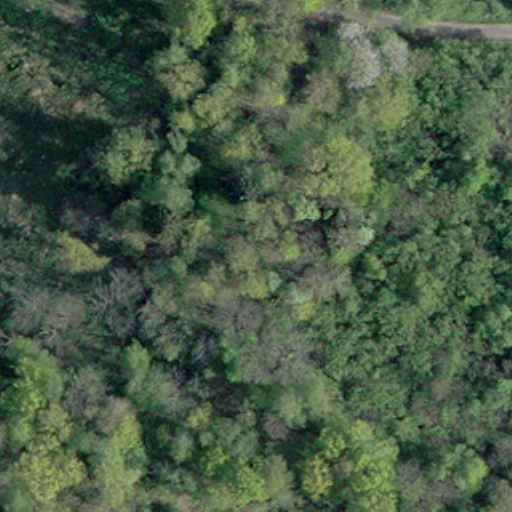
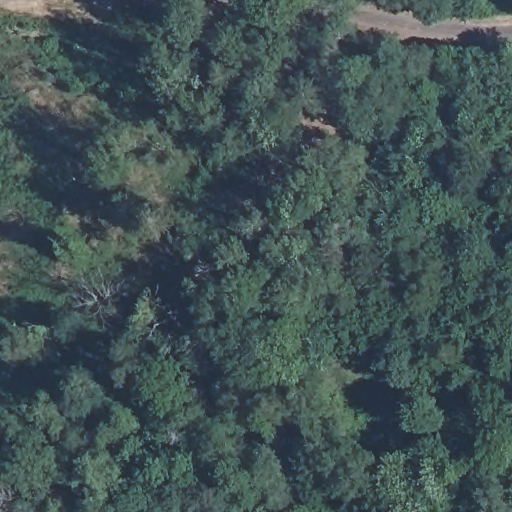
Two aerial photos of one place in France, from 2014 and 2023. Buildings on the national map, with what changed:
[]

